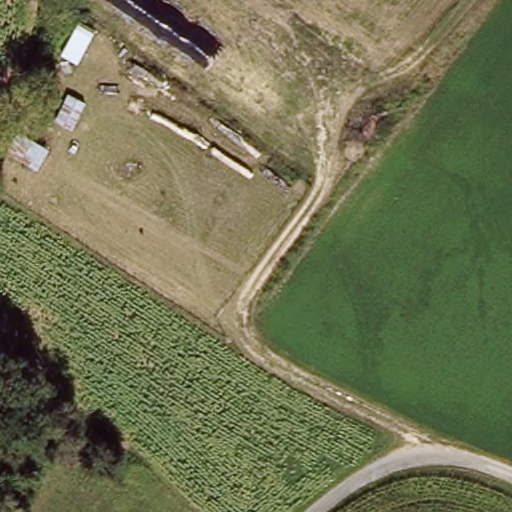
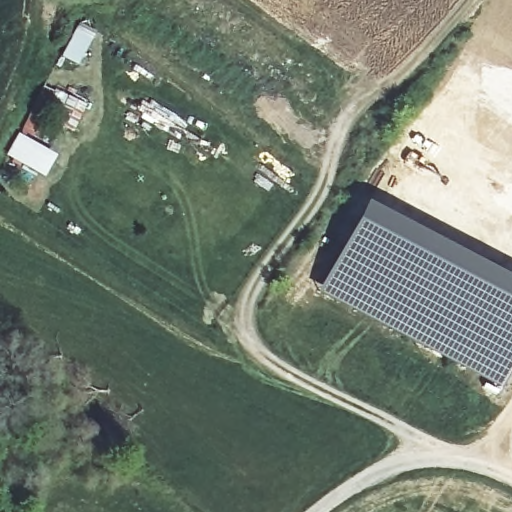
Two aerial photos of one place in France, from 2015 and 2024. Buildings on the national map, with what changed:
unchanged [(77,65),(61,56),(80,23),(95,31),(77,65)]
unchanged [(72,132),(55,124),(69,95),(86,104),(72,132)]
unchanged [(50,152),(37,173),(5,154),(17,133),(50,152)]
new [(359,207),(512,289),(512,352),(500,375),(320,280),(359,207)]

